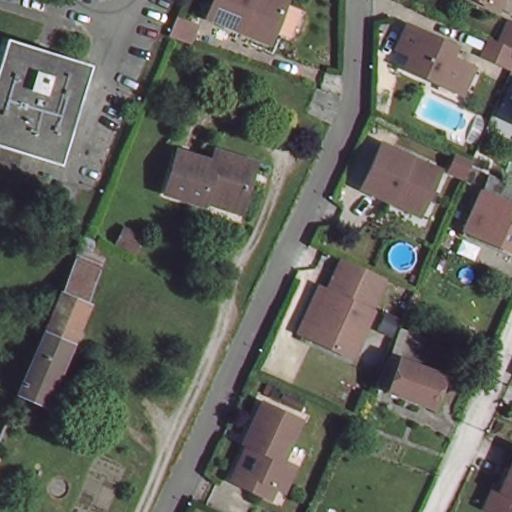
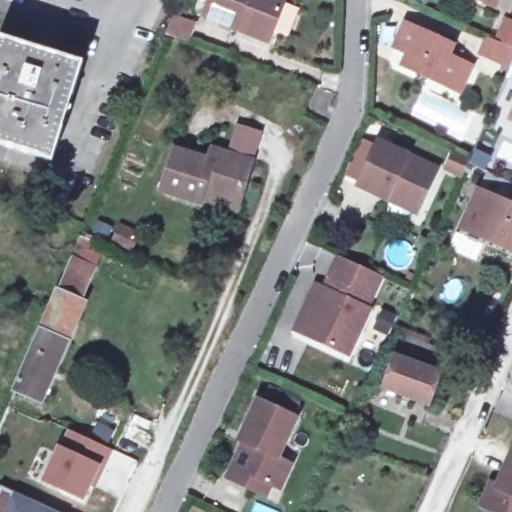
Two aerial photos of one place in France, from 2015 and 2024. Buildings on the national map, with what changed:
unchanged [(242,36),(209,22),(217,0),(277,0),(289,5),(274,38),(270,47),(242,36)]
unchanged [(493,12),(468,0),(499,0),(493,12)]
unchanged [(176,19),(197,26),(190,46),(168,39),(176,19)]
unchanged [(512,25),(512,63),(510,67),(481,54),(489,37),(497,41),(505,22),(512,25)]
unchanged [(452,91),(440,85),(405,68),(409,56),(386,46),(397,23),(443,42),(438,54),(452,60),(465,66),(452,91)]
unchanged [(80,61),(50,160),(0,143),(0,37),(80,61)]
unchanged [(512,109),(512,124),(506,122),(512,109)]
unchanged [(201,201),(165,190),(178,149),(212,159),(215,150),(227,154),(235,127),(259,135),(251,161),(239,202),(237,212),(201,201)]
unchanged [(432,171),(415,209),(387,196),(384,202),(355,188),(374,145),(432,171)]
unchanged [(465,160),(464,162),(457,177),(441,171),(448,152),(465,160)]
unchanged [(508,204),(512,206),(512,242),(509,249),(459,226),(483,173),(512,184),(512,194),(508,204)]
unchanged [(150,244),(144,257),(130,251),(136,238),(150,244)]
unchanged [(89,255),(84,265),(99,271),(79,316),(81,317),(38,412),(10,402),(73,249),(89,255)]
unchanged [(339,260),(379,278),(365,310),(369,311),(350,353),(312,337),(295,329),(315,287),(324,292),(339,260)]
unchanged [(424,353),(421,359),(446,370),(423,421),(379,403),(381,400),(370,396),(393,342),(424,353)]
unchanged [(303,399),(298,408),(278,399),(283,390),(303,399)]
unchanged [(245,490),(230,482),(248,443),(245,442),(260,409),(294,425),(277,464),(290,471),(280,491),(269,486),(264,498),(245,490)]
new [(58,446),(68,429),(112,450),(100,478),(94,476),(83,500),(41,481),(58,446)]
unchanged [(512,512),(487,501),(496,481),(490,478),(508,439),(512,441),(512,512)]
new [(56,512),(0,512),(0,488),(1,487),(56,512)]

